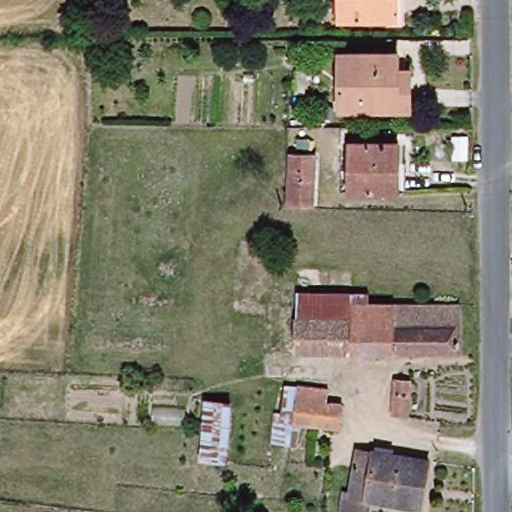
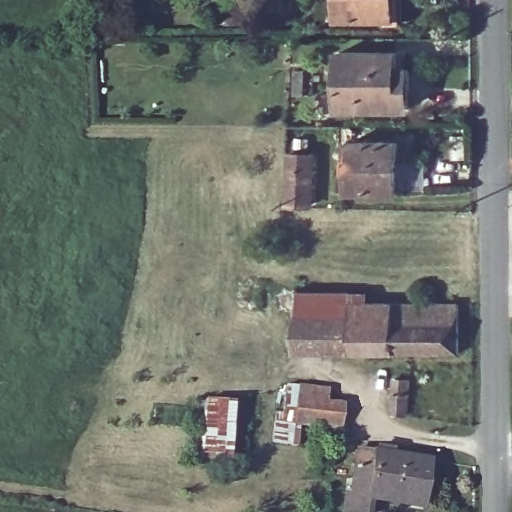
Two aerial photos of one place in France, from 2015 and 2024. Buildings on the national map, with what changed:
unchanged [(340,0),(389,0),(390,14),(340,15),(340,0)]
unchanged [(339,111),(340,55),(400,55),(401,72),(408,73),(406,111),(339,111)]
unchanged [(346,140),(395,140),(395,189),(346,189),(346,140)]
unchanged [(311,158),(307,207),(284,207),(287,156),(311,158)]
unchanged [(352,287),(352,302),(352,319),(301,319),(291,319),(291,285),(352,287)]
unchanged [(301,319),(352,319),(352,302),(459,304),(459,352),(300,353),(301,319)]
unchanged [(387,403),(391,369),(405,372),(401,405),(387,403)]
unchanged [(280,426),(282,387),(313,389),(314,399),(329,402),(329,431),(280,426)]
unchanged [(210,483),(219,403),(249,406),(239,486),(210,483)]
unchanged [(402,504),(367,502),(366,512),(343,512),(348,454),(421,458),(419,479),(416,504),(402,504)]

